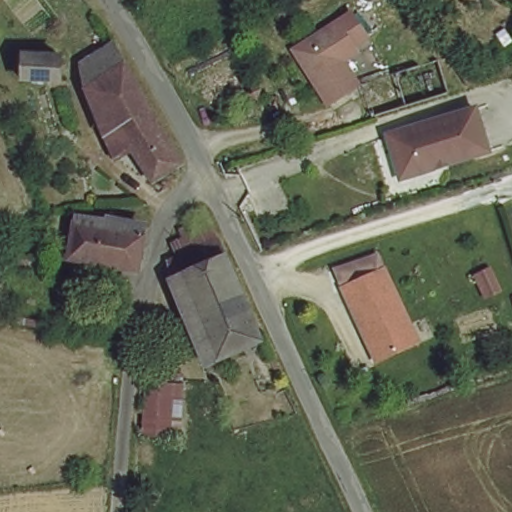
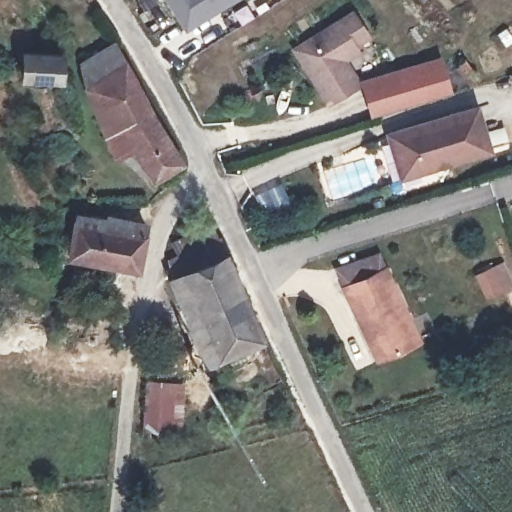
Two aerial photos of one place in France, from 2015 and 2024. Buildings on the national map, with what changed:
new [(165,0),(237,0),(186,33),(165,0)]
unchanged [(331,100),(297,44),(354,10),(366,31),(359,35),(365,44),(346,56),(362,82),(331,100)]
unchanged [(111,122),(91,81),(98,77),(87,56),(120,39),(130,57),(188,157),(157,172),(142,142),(126,151),(111,122)]
unchanged [(64,47),(62,73),(22,70),(25,45),(64,47)]
new [(442,58),(452,92),(409,105),(400,71),(442,58)]
new [(400,71),(409,105),(375,115),(366,81),(400,71)]
unchanged [(395,159),(386,134),(475,107),(488,150),(417,172),(400,177),(395,159)]
unchanged [(65,257),(71,222),(72,214),(141,225),(140,234),(133,268),(65,257)]
unchanged [(229,264),(183,285),(175,267),(220,245),(229,264)]
unchanged [(210,368),(175,288),(183,285),(229,264),(266,344),(210,368)]
unchanged [(388,267),(423,338),(383,359),(347,287),(388,267)]
unchanged [(178,380),(175,429),(148,427),(152,377),(178,380)]

